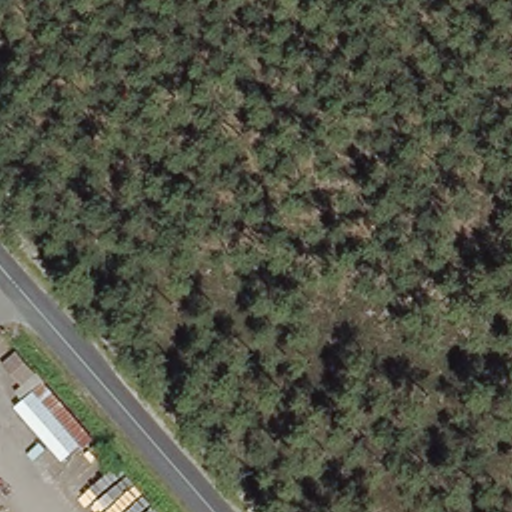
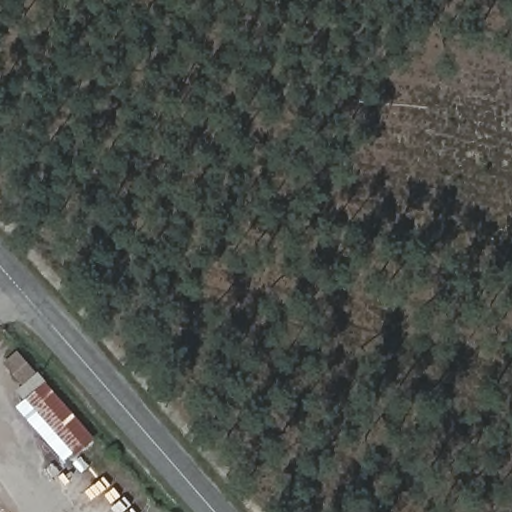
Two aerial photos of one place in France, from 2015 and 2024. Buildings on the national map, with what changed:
unchanged [(35,373),(37,371),(92,436),(72,452),(16,392),(21,385),(5,364),(18,351),(35,373)]

